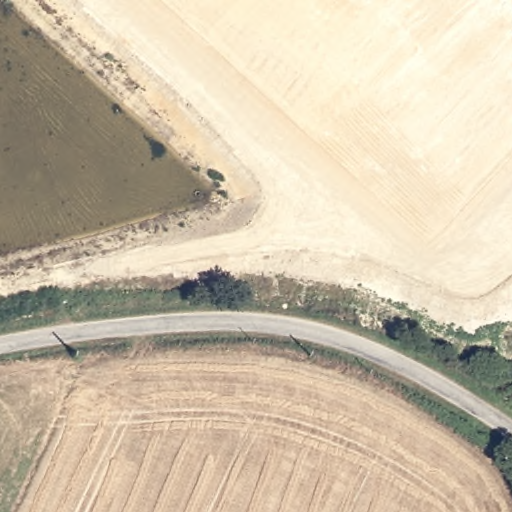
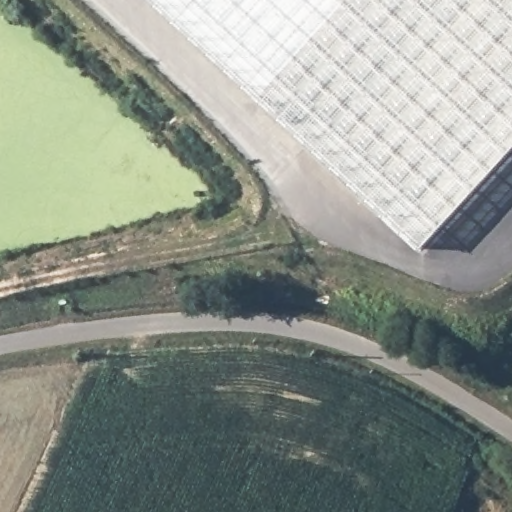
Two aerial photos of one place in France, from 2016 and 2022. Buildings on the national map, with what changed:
new [(150,0),(512,0),(512,156),(424,252),(150,0)]
unchanged [(130,297),(135,296),(135,300),(130,301),(130,297)]

